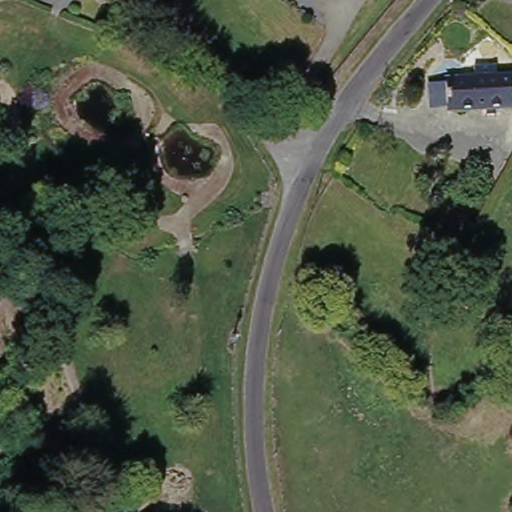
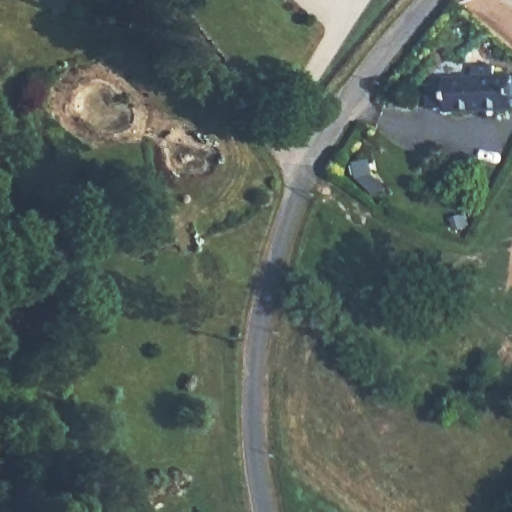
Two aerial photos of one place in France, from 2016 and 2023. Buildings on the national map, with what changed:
unchanged [(482,76),(512,76),(512,111),(503,111),(503,117),(495,117),(495,111),(457,110),(443,110),(443,82),(456,83),(457,80),(480,82),(482,76)]

